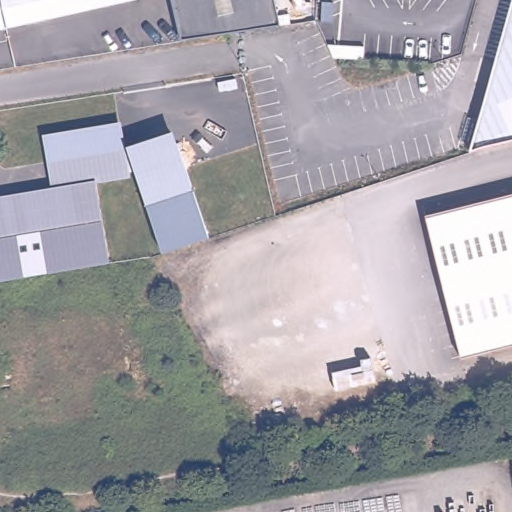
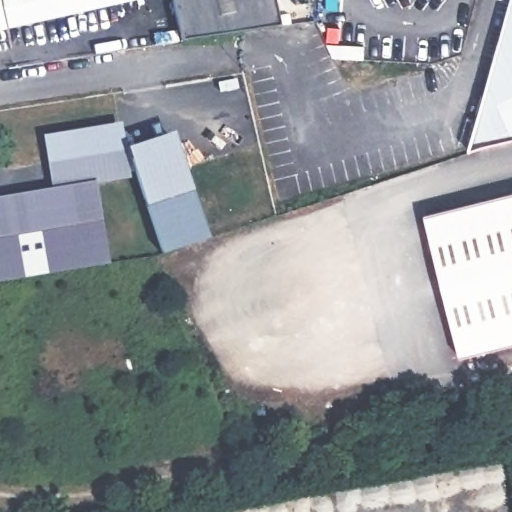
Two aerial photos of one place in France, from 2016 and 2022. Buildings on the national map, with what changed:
unchanged [(0,0),(114,0),(2,23),(0,11),(0,0)]
unchanged [(282,23),(184,37),(175,0),(277,0),(282,23)]
unchanged [(473,144),(512,14),(512,134),(499,136),(473,144)]
unchanged [(0,24),(0,21),(1,23),(0,24)]
unchanged [(42,139),(117,127),(124,170),(89,176),(103,262),(62,268),(0,279),(0,199),(52,191),(42,139)]
unchanged [(211,237),(162,253),(128,147),(176,130),(211,237)]
unchanged [(467,351),(452,296),(428,208),(450,203),(512,188),(512,340),(467,351)]

